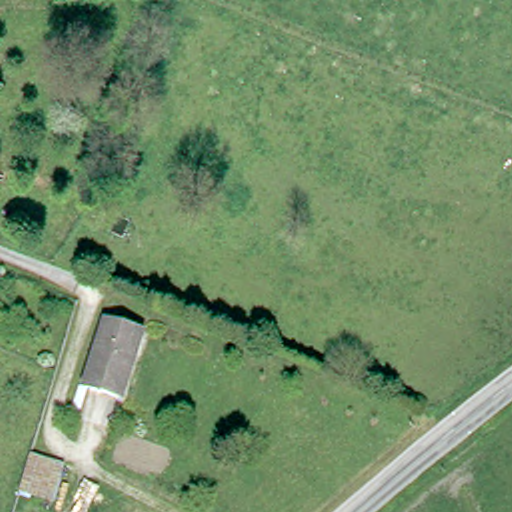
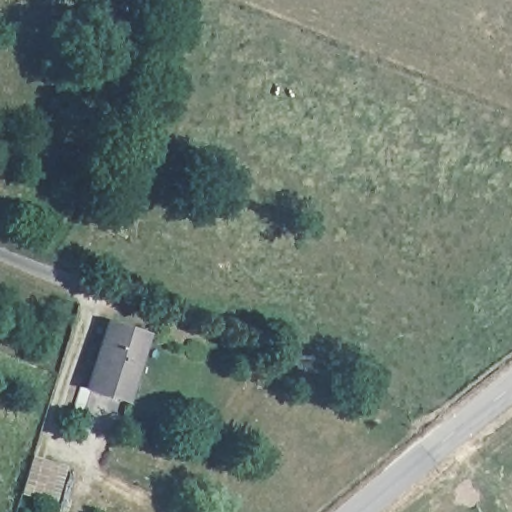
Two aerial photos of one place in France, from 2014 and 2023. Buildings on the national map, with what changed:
unchanged [(111,321),(148,335),(125,399),(92,385),(84,408),(75,405),(83,382),(89,384),(111,321)]

